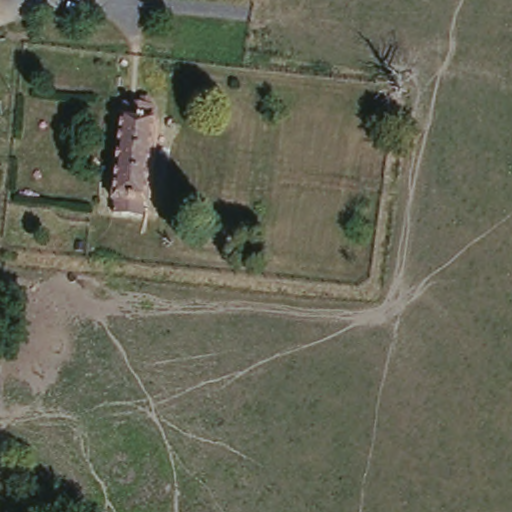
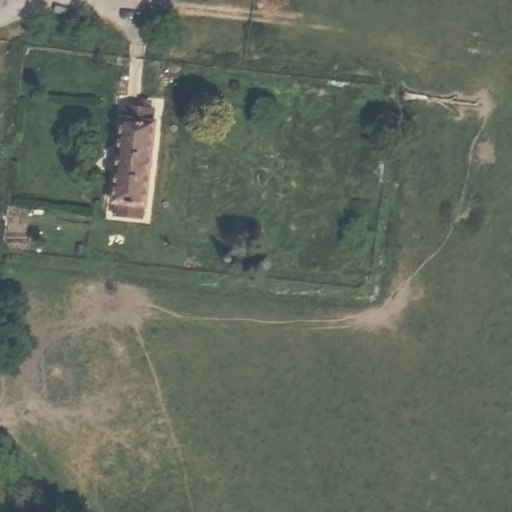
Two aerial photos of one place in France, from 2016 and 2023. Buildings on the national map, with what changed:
unchanged [(157,114),(144,214),(131,213),(128,232),(114,230),(115,216),(111,210),(111,202),(124,109),(157,114)]

